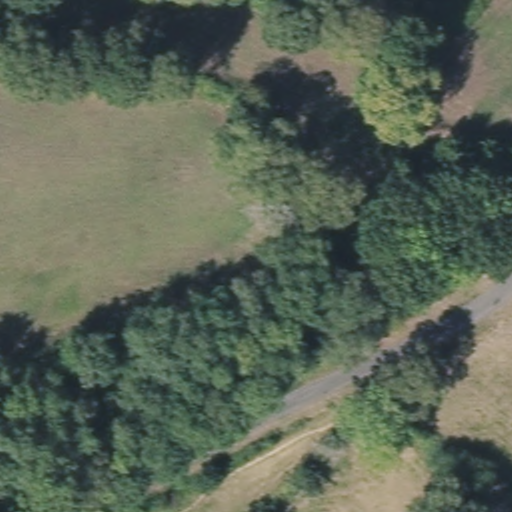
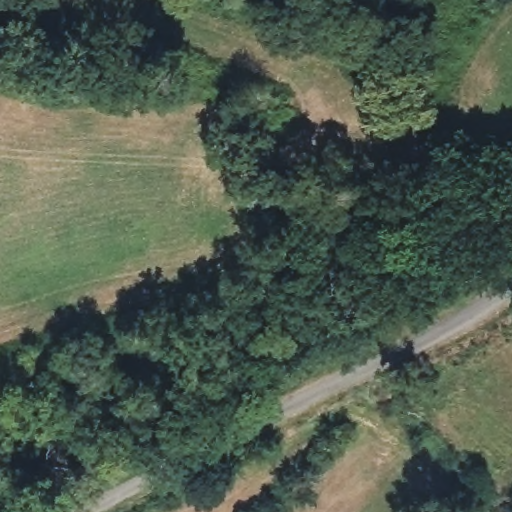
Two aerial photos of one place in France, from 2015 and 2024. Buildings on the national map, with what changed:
[]

